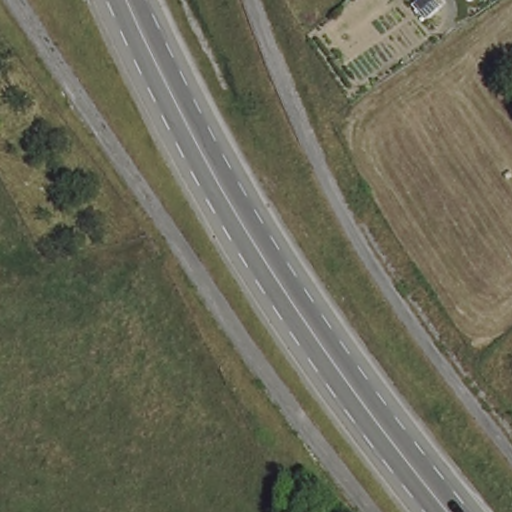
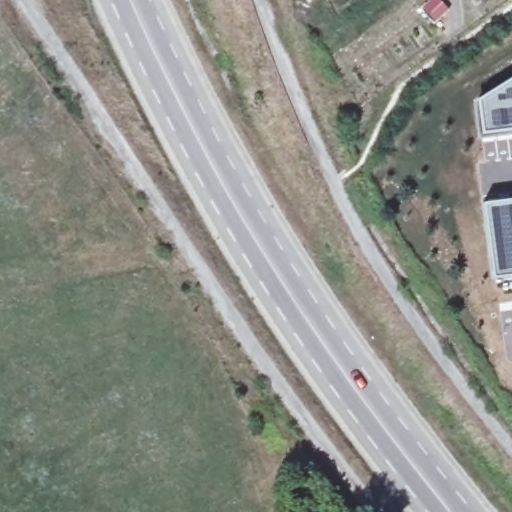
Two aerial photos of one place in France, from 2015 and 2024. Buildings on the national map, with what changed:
new [(512,75),(512,131),(481,136),(476,98),(512,75)]
new [(512,198),(512,276),(492,279),(482,202),(512,198)]

